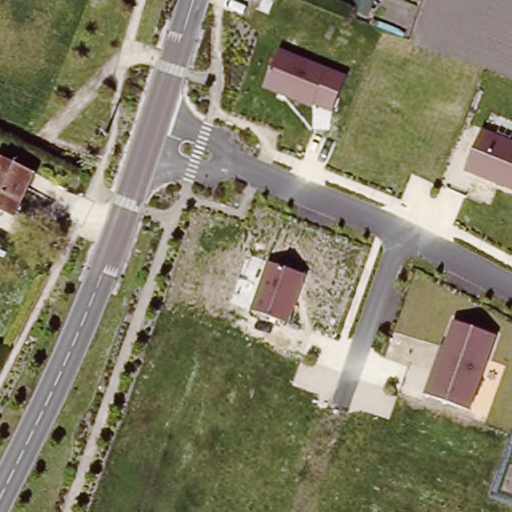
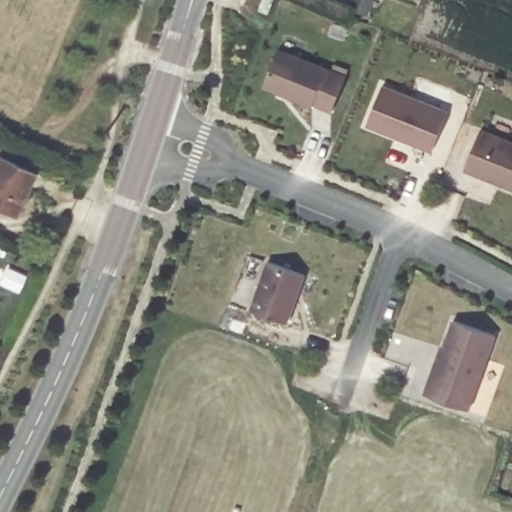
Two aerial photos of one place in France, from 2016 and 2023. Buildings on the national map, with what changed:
unchanged [(354,0),(378,0),(371,20),(349,12),(354,0)]
unchanged [(346,70),(331,112),(263,88),(278,47),(346,70)]
new [(449,105),(432,144),(368,115),(386,76),(449,105)]
unchanged [(512,139),(512,188),(463,169),(481,126),(512,139)]
unchanged [(0,208),(0,160),(1,157),(35,174),(14,215),(0,208)]
unchanged [(306,272),(293,323),(253,312),(268,263),(306,272)]
unchanged [(493,332),(471,408),(426,394),(451,319),(493,332)]

